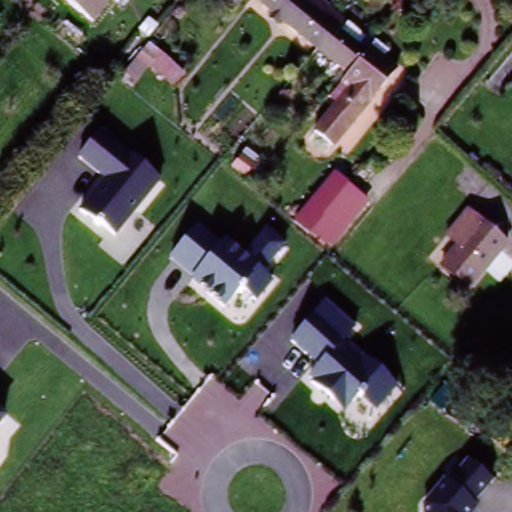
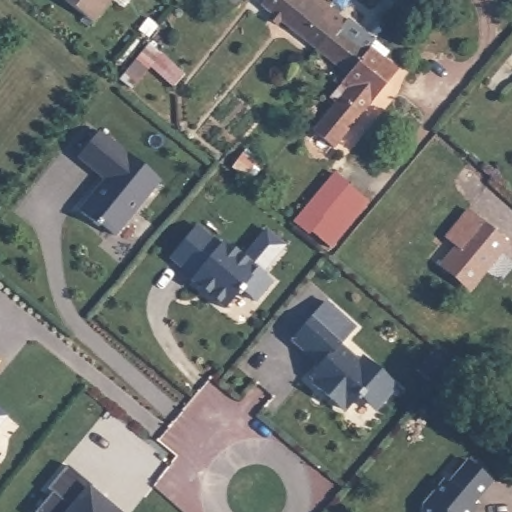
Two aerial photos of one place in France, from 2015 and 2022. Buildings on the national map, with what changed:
unchanged [(63,0),(110,0),(91,22),(63,0)]
unchanged [(262,7),(268,0),(316,0),(330,11),(320,21),(333,32),(316,51),(267,10),(262,7)]
unchanged [(337,103),(330,97),(341,84),(344,80),(347,77),(316,51),(333,32),(320,21),(330,11),(346,25),(345,26),(364,41),(366,39),(375,45),(381,50),(380,50),(387,56),(382,62),(395,73),(371,102),(332,145),(313,130),(337,103)]
unchanged [(186,69),(171,86),(149,70),(134,86),(121,76),(149,41),(186,69)]
unchanged [(160,181),(112,237),(77,209),(100,181),(76,160),(99,131),(160,181)]
unchanged [(330,251),(293,222),(336,174),(366,204),(330,251)]
unchanged [(459,243),(449,231),(468,210),(508,244),(472,290),(442,263),(459,243)]
unchanged [(198,225),(219,242),(221,240),(245,256),(265,230),(283,245),(263,273),(273,280),(256,301),(238,286),(225,306),(168,261),(198,225)]
unchanged [(358,327),(340,346),(355,359),(362,352),(397,387),(372,415),(356,401),(341,417),(302,381),(316,366),(291,340),(325,301),(358,327)]
unchanged [(0,423),(0,411),(5,415),(0,423)]
unchanged [(492,481),(473,503),(476,505),(470,512),(419,512),(418,507),(444,477),(448,480),(465,459),(492,481)]
new [(51,493),(47,490),(67,466),(92,487),(86,493),(101,505),(102,503),(114,512),(36,512),(51,493)]

